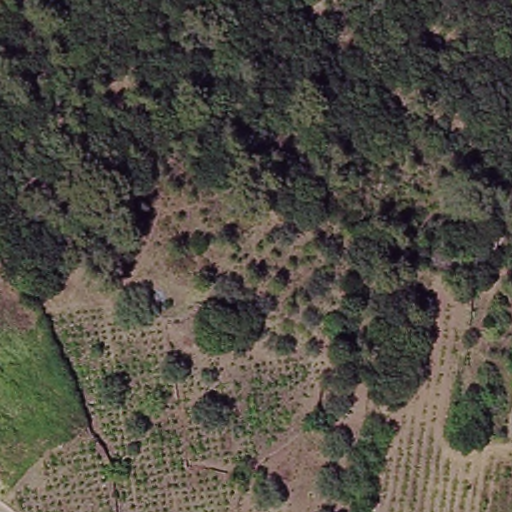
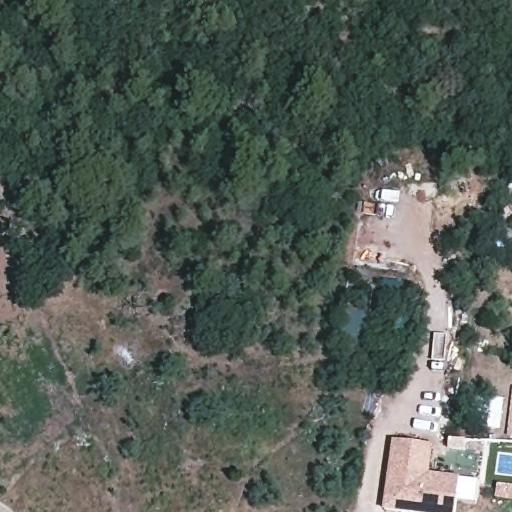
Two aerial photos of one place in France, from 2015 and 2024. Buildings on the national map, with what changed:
unchanged [(512,393),(512,437),(506,436),(512,393)]
new [(393,439),(434,445),(431,473),(461,478),(456,512),(406,512),(384,509),(393,439)]

